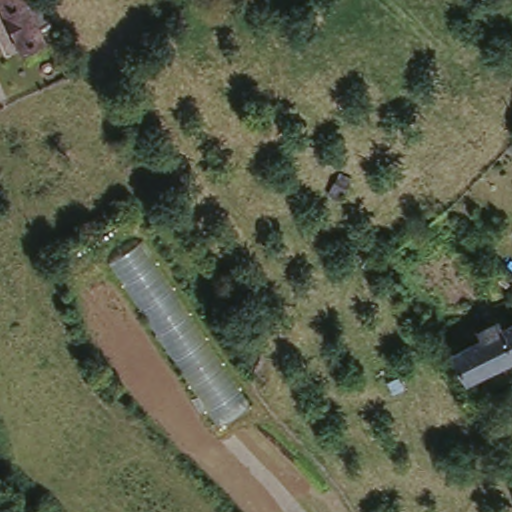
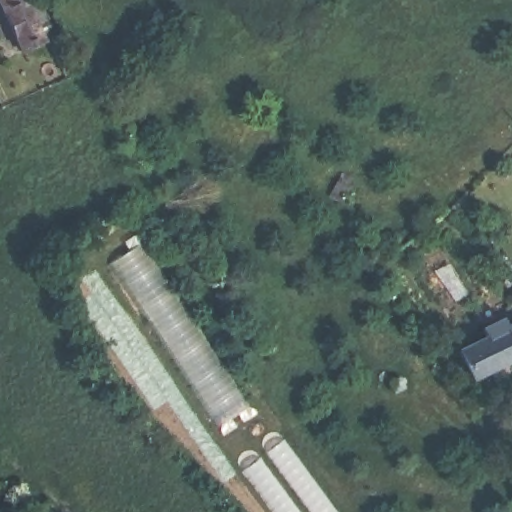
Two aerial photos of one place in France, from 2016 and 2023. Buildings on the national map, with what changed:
unchanged [(45,36),(20,47),(0,5),(0,0),(28,0),(45,36)]
unchanged [(342,172),(351,178),(340,196),(330,191),(342,172)]
unchanged [(253,403),(223,427),(109,267),(139,242),(253,403)]
unchanged [(504,332),(512,329),(512,365),(472,385),(458,355),(483,343),(479,333),(499,322),(504,332)]
unchanged [(395,377),(401,387),(393,392),(387,381),(395,377)]
new [(333,512),(267,512),(233,467),(273,432),(333,512)]

